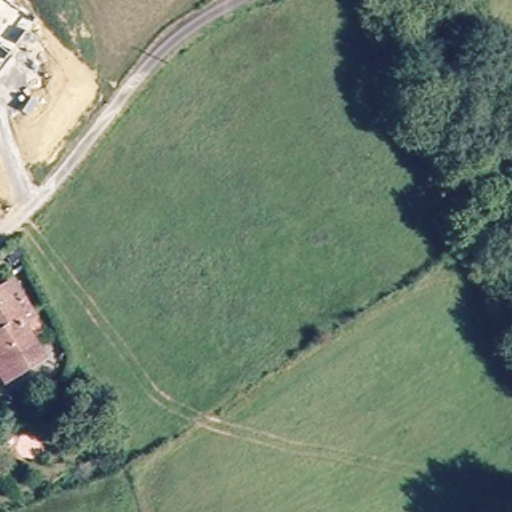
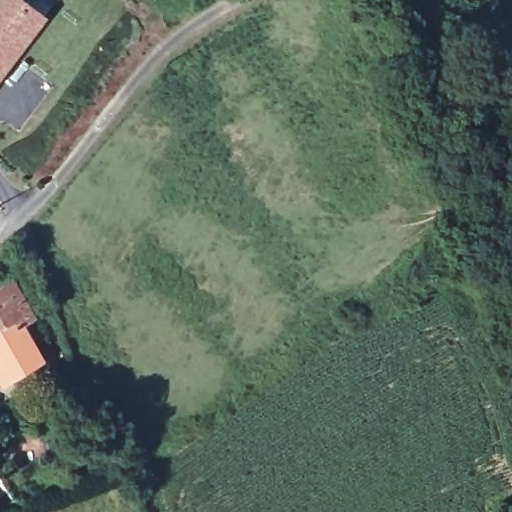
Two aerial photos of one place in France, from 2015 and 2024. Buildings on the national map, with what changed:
new [(38,20),(0,69),(0,0),(11,0),(38,20)]
unchanged [(34,314),(26,319),(47,357),(9,377),(4,367),(0,368),(0,334),(1,334),(0,333),(0,297),(20,287),(34,314)]

